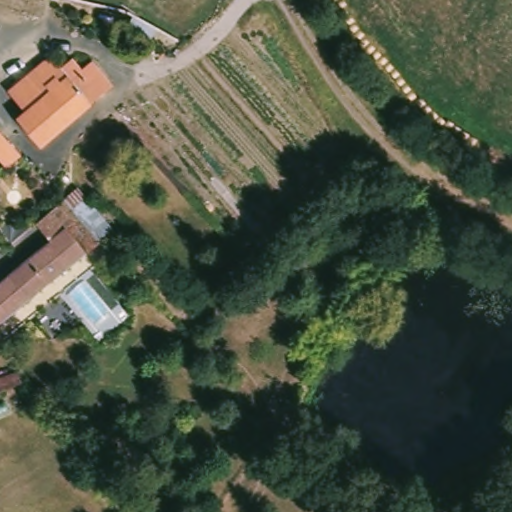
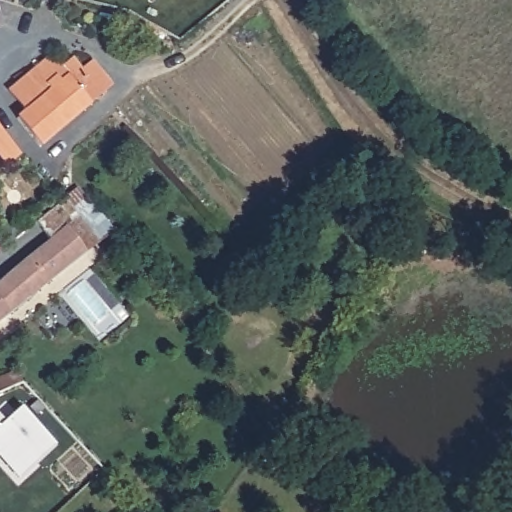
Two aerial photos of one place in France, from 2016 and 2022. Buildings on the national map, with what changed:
unchanged [(56,69),(58,72),(65,66),(68,64),(72,68),(78,74),(87,85),(90,82),(97,77),(106,89),(104,91),(99,95),(40,146),(16,118),(25,111),(8,90),(46,56),(56,69)]
unchanged [(5,169),(0,163),(0,137),(18,157),(5,169)]
unchanged [(97,245),(81,257),(51,280),(26,301),(5,274),(38,248),(47,240),(36,226),(34,223),(66,198),(75,190),(84,200),(74,207),(69,202),(67,204),(94,242),(97,245)]
unchanged [(0,322),(0,279),(5,274),(26,301),(0,322)]
unchanged [(0,378),(13,373),(18,383),(4,389),(3,390),(0,381),(0,378)]
new [(0,454),(0,413),(7,420),(23,406),(57,441),(39,459),(21,476),(11,465),(0,454)]

